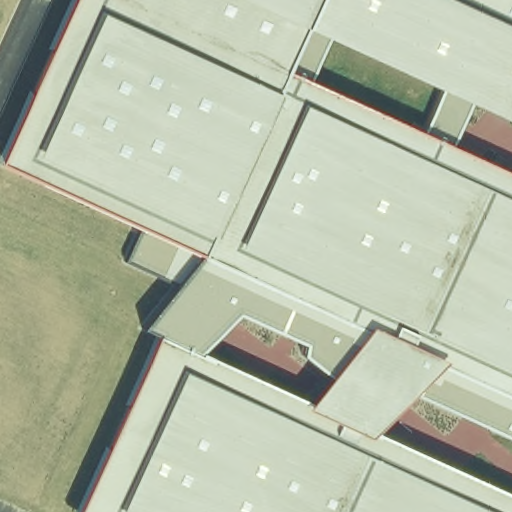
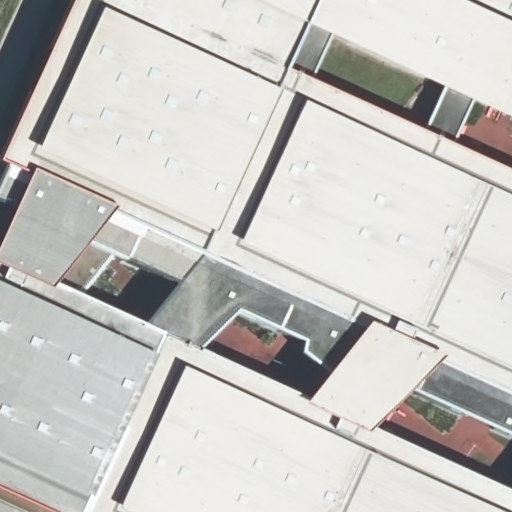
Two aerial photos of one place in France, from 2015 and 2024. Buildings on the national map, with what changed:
unchanged [(157,333),(152,330),(145,326),(152,317),(177,285),(152,272),(130,260),(147,228),(110,213),(25,172),(0,161),(77,0),(512,0),(512,120),(471,102),(452,144),(512,172),(512,439),(407,390),(369,431),(512,496),(512,512),(78,512),(152,345),(157,333)]
new [(25,172),(110,213),(57,285),(145,326),(157,333),(152,345),(78,512),(48,512),(0,490),(0,240),(25,172)]

